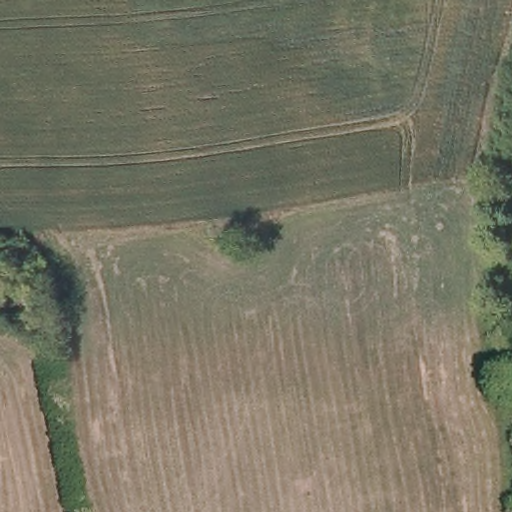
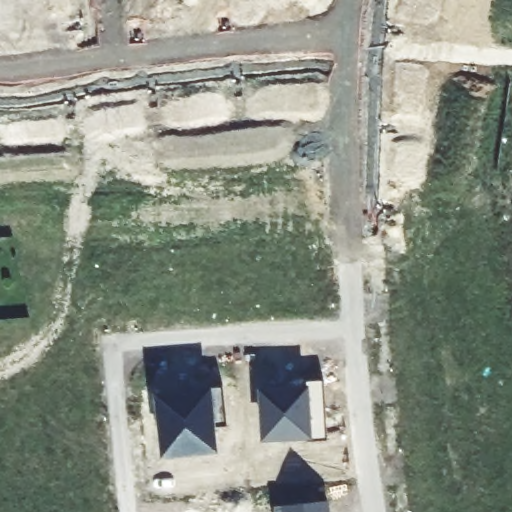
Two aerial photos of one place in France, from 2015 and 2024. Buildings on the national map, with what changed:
new [(262,442),(259,387),(308,386),(307,381),(322,381),(326,439),(262,442)]
new [(156,393),(223,387),(228,425),(216,426),(219,452),(163,458),(156,393)]
new [(274,506),(329,502),(330,512),(275,512),(274,506)]

